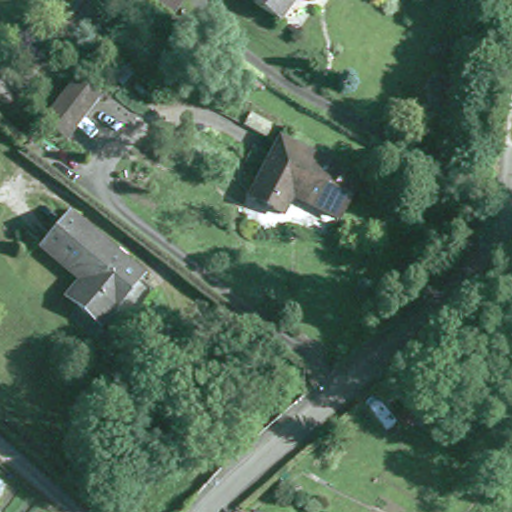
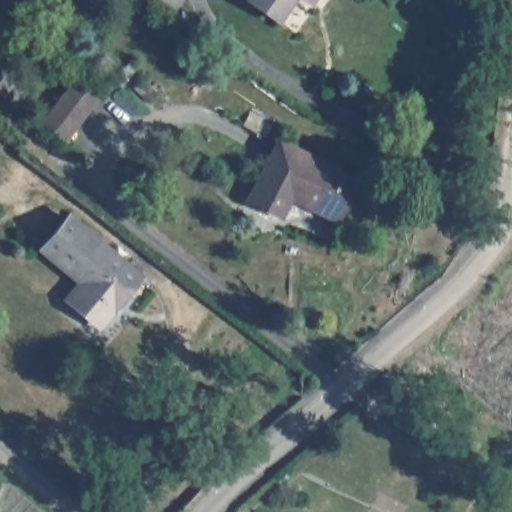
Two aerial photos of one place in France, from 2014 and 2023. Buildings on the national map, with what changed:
unchanged [(251,0),(295,0),(279,20),(251,0)]
unchanged [(308,0),(315,0),(312,4),(308,0)]
unchanged [(97,102),(65,143),(43,125),(74,85),(97,102)]
unchanged [(280,136),(357,175),(337,215),(280,186),(271,206),(250,195),(280,136)]
unchanged [(86,276),(48,244),(75,212),(144,273),(104,320),(72,293),(86,276)]

